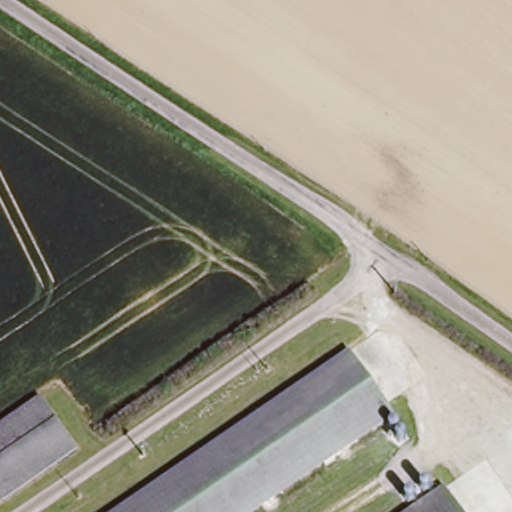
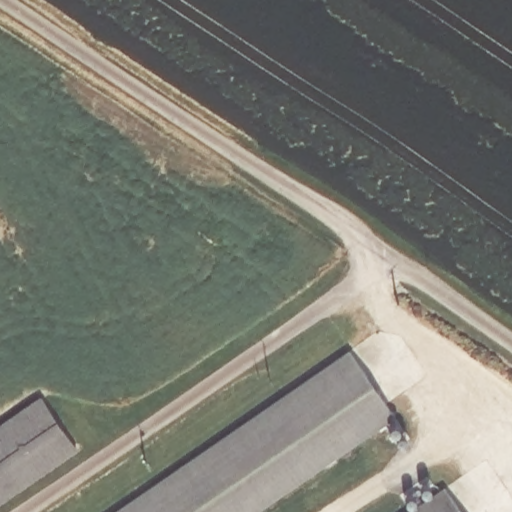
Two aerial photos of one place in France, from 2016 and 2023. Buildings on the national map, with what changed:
unchanged [(390,413),(245,512),(110,512),(348,351),(390,413)]
unchanged [(42,398),(78,450),(0,504),(0,427),(42,398)]
unchanged [(462,512),(409,512),(445,488),(462,512)]

